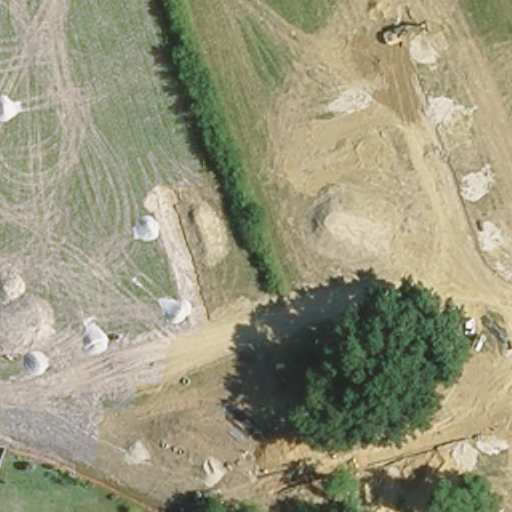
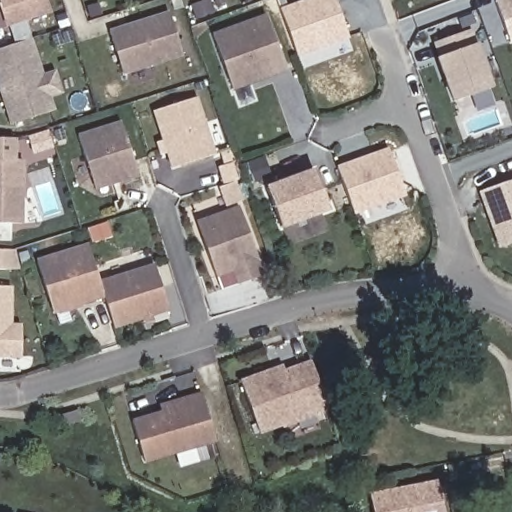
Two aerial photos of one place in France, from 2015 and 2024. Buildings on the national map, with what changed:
new [(6,27),(0,7),(0,0),(47,0),(51,14),(6,27)]
new [(304,0),(335,0),(347,35),(340,37),(341,42),(329,47),(327,42),(295,53),(277,9),(304,0)]
new [(512,43),(511,43),(497,2),(502,0),(512,0),(512,43)]
new [(122,75),(108,30),(169,11),(183,57),(122,75)]
new [(232,91),(212,33),(266,13),(287,71),(232,91)]
new [(473,30),(495,88),(458,102),(449,80),(452,79),(450,73),(447,74),(441,58),(444,57),(438,43),(473,30)]
new [(10,126),(0,96),(0,49),(32,39),(43,74),(56,70),(63,94),(50,98),(55,111),(10,126)]
new [(171,169),(152,111),(198,97),(217,154),(171,169)]
new [(95,190),(78,134),(120,121),(138,177),(95,190)]
new [(0,223),(0,138),(15,138),(15,159),(24,159),(23,224),(0,223)]
new [(352,212),(336,167),(388,149),(404,192),(352,212)]
new [(280,229),(264,186),(314,168),(330,211),(280,229)]
new [(512,245),(502,248),(482,192),(512,181),(512,245)]
new [(221,292),(195,221),(240,205),(265,276),(221,292)]
new [(53,316),(35,259),(87,243),(100,280),(105,298),(53,316)]
new [(115,329),(105,298),(100,280),(154,264),(169,312),(115,329)]
new [(0,357),(0,287),(12,287),(11,324),(21,324),(21,358),(0,357)]
new [(260,436),(240,379),(282,365),(285,370),(314,361),(330,411),(260,436)]
new [(144,464),(131,419),(161,411),(159,405),(200,393),(216,443),(144,464)]
demolished [(359,437),(356,422),(397,414),(400,428),(359,437)]
new [(438,480),(445,512),(373,512),(369,492),(438,480)]

